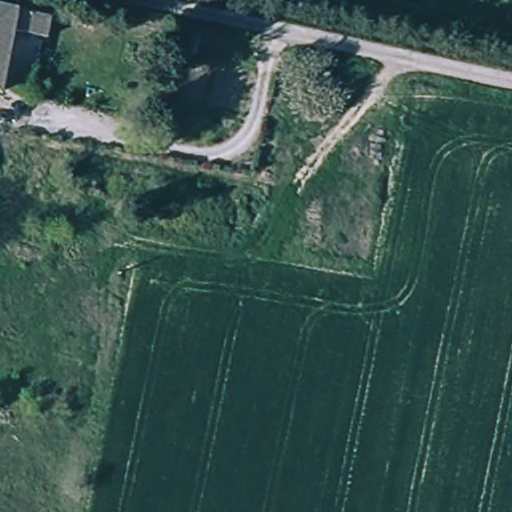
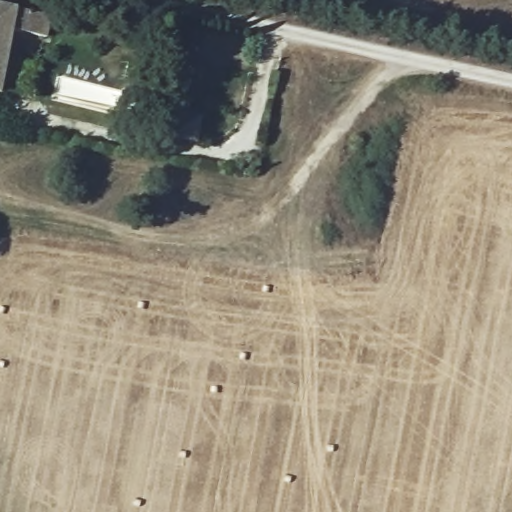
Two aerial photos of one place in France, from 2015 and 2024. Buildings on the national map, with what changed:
unchanged [(50,20),(47,41),(11,35),(0,95),(0,12),(50,20)]

